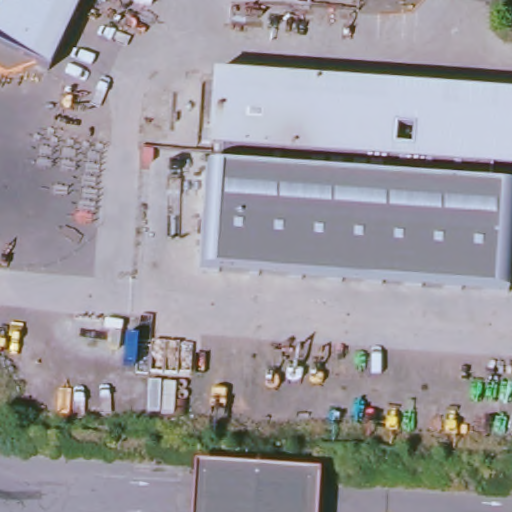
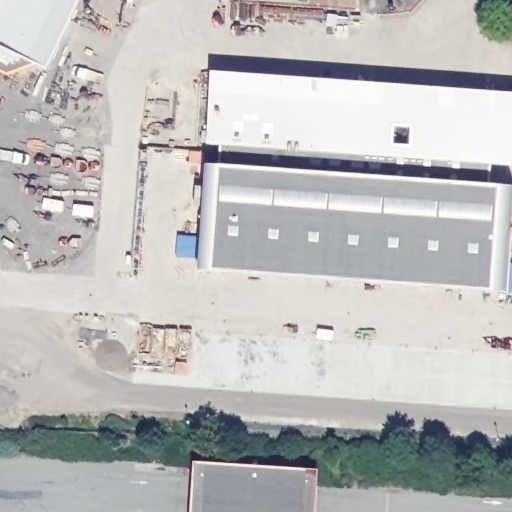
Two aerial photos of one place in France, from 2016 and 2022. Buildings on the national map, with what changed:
unchanged [(47,66),(31,59),(24,74),(0,63),(0,8),(4,0),(78,0),(47,66)]
unchanged [(512,93),(512,164),(489,162),(221,142),(210,142),(216,71),(512,93)]
unchanged [(201,268),(208,163),(220,161),(221,142),(489,162),(487,182),(510,184),(502,290),(201,268)]
unchanged [(311,465),(310,512),(184,512),(186,461),(205,461),(311,465)]

